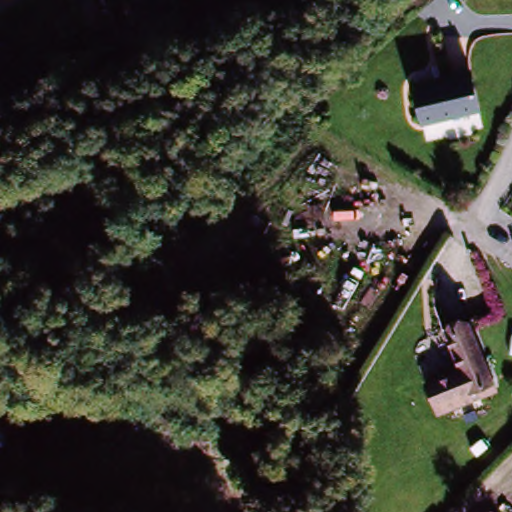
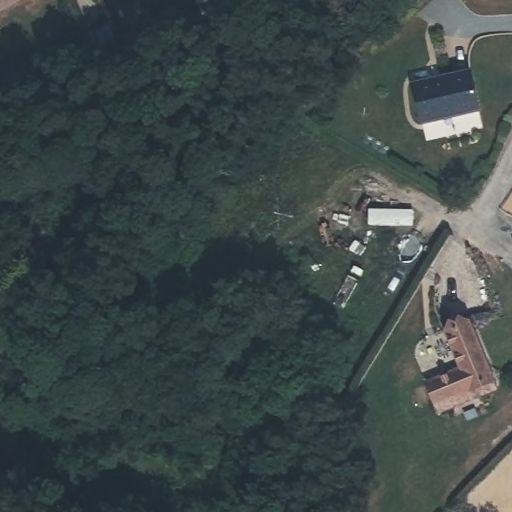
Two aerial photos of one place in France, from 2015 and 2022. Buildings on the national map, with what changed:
unchanged [(472,73),(480,109),(422,121),(414,87),(472,73)]
unchanged [(429,381),(461,369),(449,331),(471,323),(491,385),(436,406),(429,381)]

